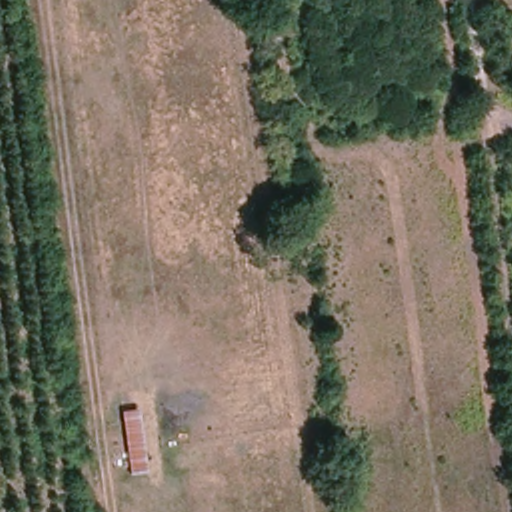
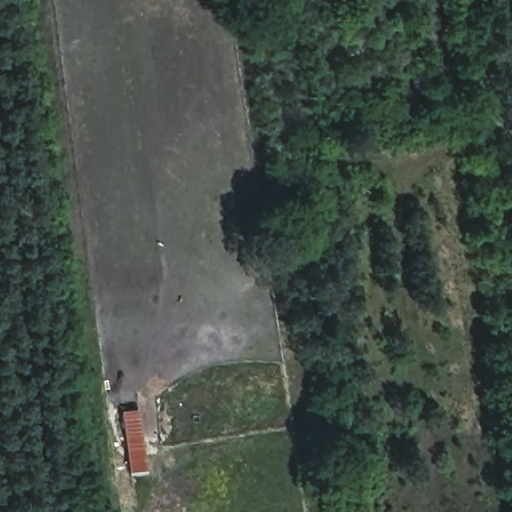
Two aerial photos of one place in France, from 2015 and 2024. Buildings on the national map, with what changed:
unchanged [(149,471),(132,473),(124,411),(141,409),(149,471)]

